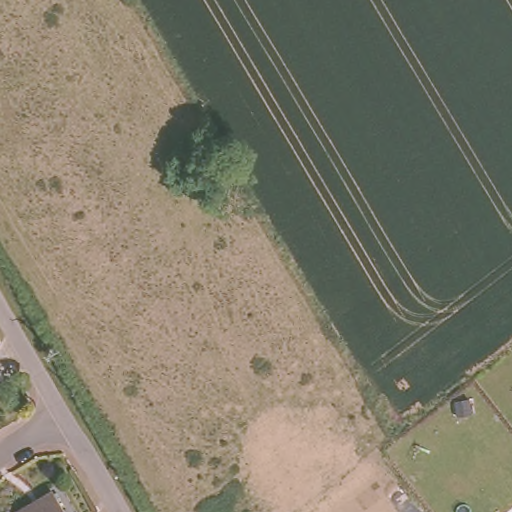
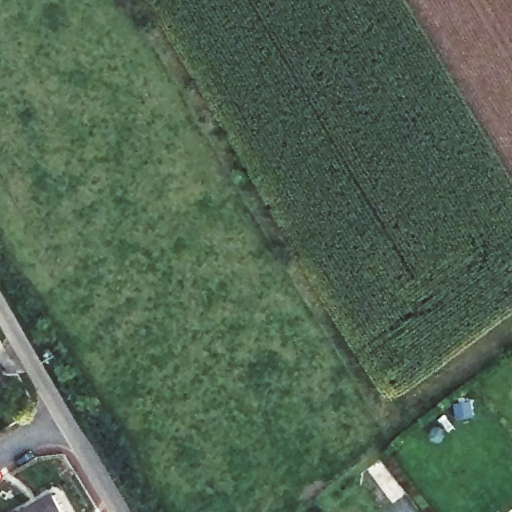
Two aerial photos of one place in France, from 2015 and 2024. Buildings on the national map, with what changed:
unchanged [(0,511),(29,492),(32,498),(54,487),(68,512),(0,512),(0,511)]

